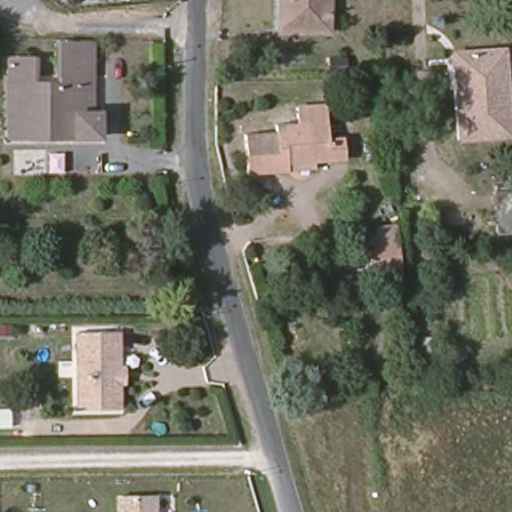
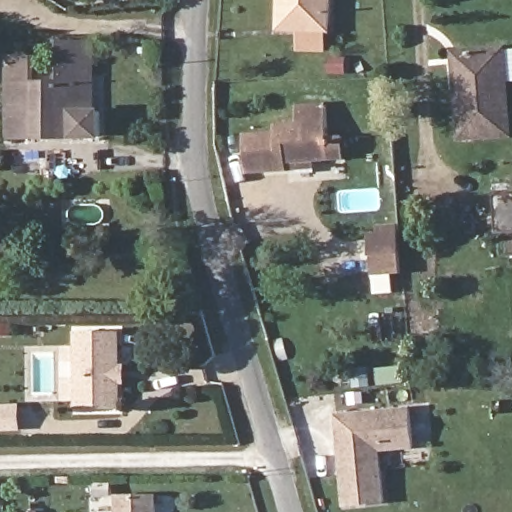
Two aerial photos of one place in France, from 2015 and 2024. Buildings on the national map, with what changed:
unchanged [(328,29),(277,28),(277,0),(328,0),(328,29)]
unchanged [(98,114),(98,138),(7,138),(6,60),(31,60),(32,85),(57,85),(56,41),(91,42),(91,86),(91,114),(98,114)]
unchanged [(508,134),(459,138),(456,90),(454,52),(467,51),(501,49),(508,134)]
unchanged [(289,171),(249,174),(247,136),(278,134),(278,126),(299,125),(299,107),(327,106),(328,140),(339,140),(340,161),(330,162),(313,162),(313,169),(289,171)]
unchanged [(512,192),(512,232),(500,233),(497,193),(512,192)]
unchanged [(373,270),(372,252),(368,252),(367,232),(377,232),(376,225),(395,224),(396,231),(399,269),(373,270)]
unchanged [(126,383),(121,383),(121,410),(82,412),(81,333),(119,332),(120,370),(125,369),(126,383)]
new [(381,452),(386,503),(345,506),(335,414),(410,406),(415,449),(381,452)]
unchanged [(156,495),(156,512),(115,512),(115,496),(156,495)]

